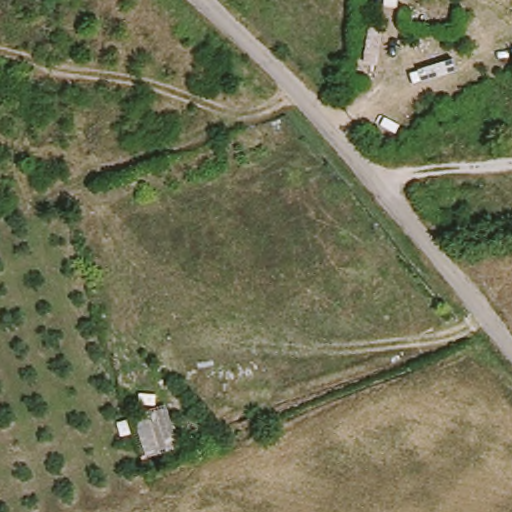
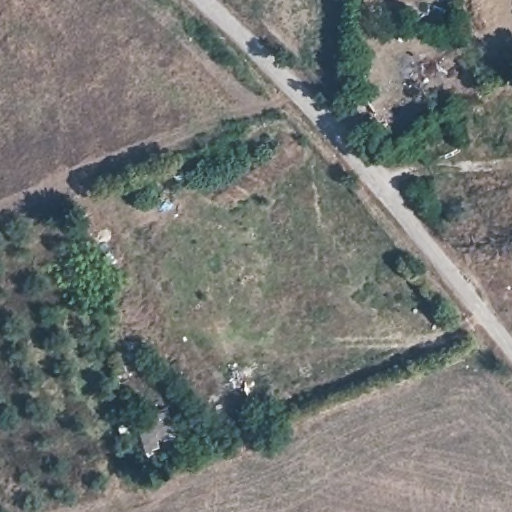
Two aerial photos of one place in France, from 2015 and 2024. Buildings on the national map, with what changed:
unchanged [(178,448),(148,459),(135,416),(164,407),(178,448)]

